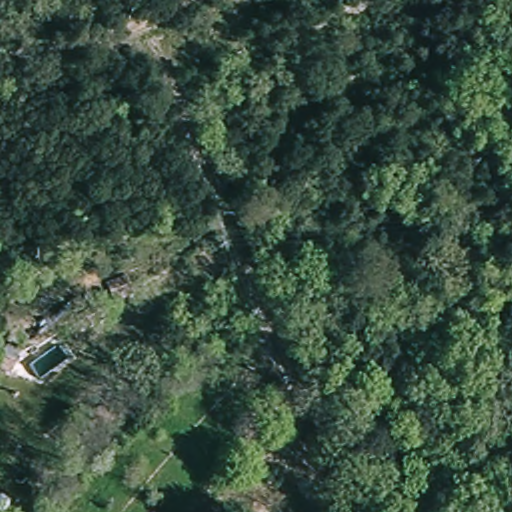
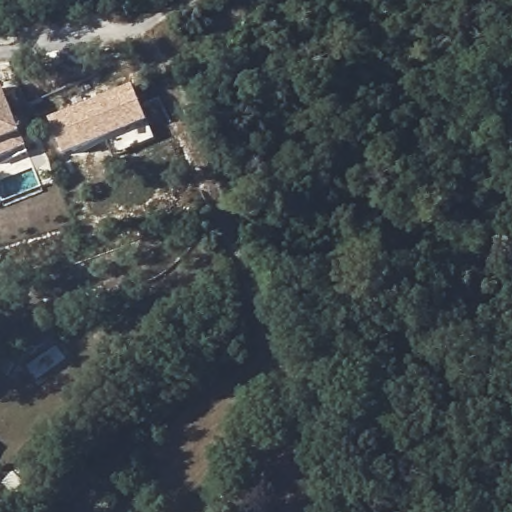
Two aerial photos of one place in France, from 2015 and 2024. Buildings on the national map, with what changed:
new [(134,86),(149,123),(156,141),(116,155),(110,139),(65,157),(48,120),(134,86)]
new [(2,87),(22,136),(28,150),(0,161),(0,88),(2,87)]
unchanged [(137,275),(147,293),(129,303),(118,286),(137,275)]
demolished [(32,388),(17,380),(23,369),(38,377),(32,388)]

